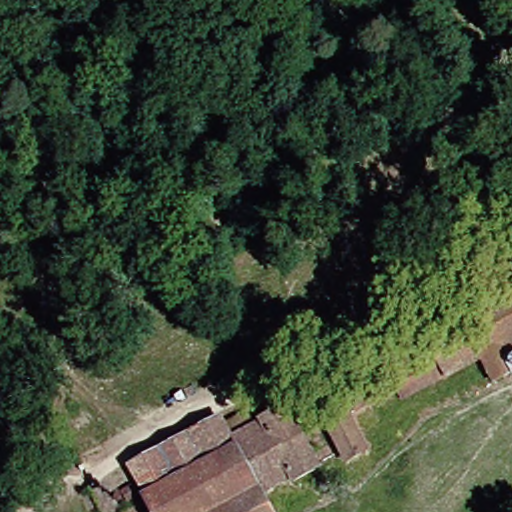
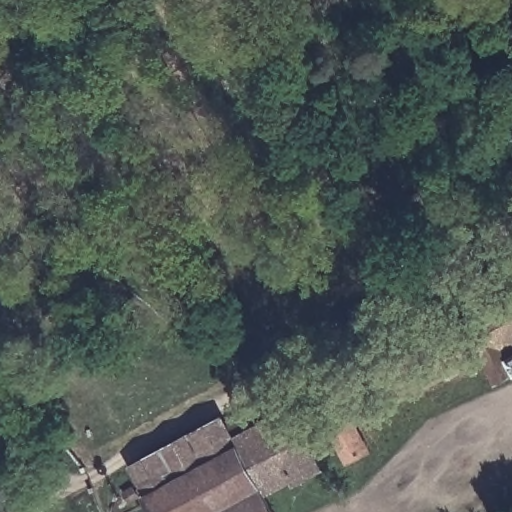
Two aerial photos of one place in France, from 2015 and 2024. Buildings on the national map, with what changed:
unchanged [(219,428),(277,396),(284,408),(288,415),(317,400),(329,420),(352,407),(340,387),(512,294),(512,337),(507,340),(512,347),(512,367),(495,376),(482,354),(360,420),(373,444),(345,459),(338,448),(321,458),(323,462),(295,478),(291,473),(260,490),(273,512),(152,512),(144,498),(126,467),(213,419),(219,428)]

